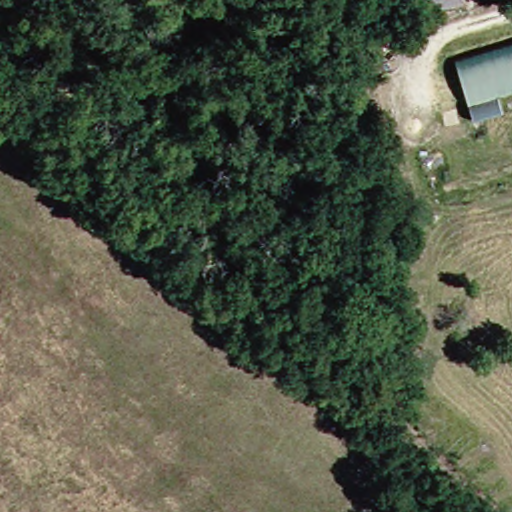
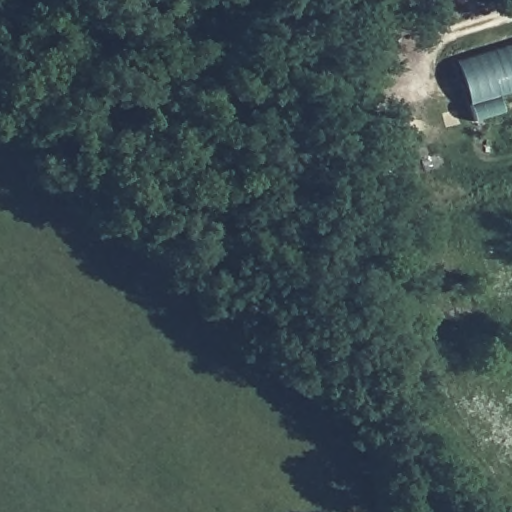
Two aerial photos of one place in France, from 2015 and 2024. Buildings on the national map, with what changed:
unchanged [(496,100),(502,116),(475,123),(457,68),(512,50),(512,95),(496,100)]

